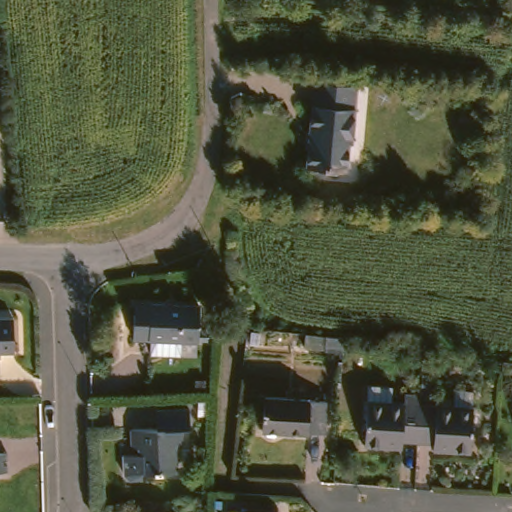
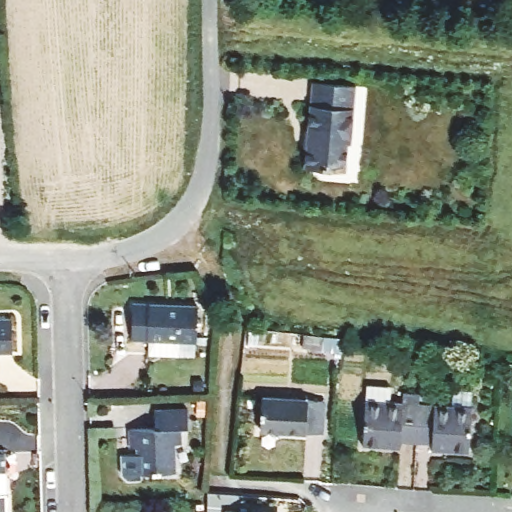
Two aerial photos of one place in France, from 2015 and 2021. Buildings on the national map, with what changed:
unchanged [(314,140),(314,131),(311,129),(311,79),(356,79),(356,135),(352,135),(352,164),(311,164),(311,144),(314,140)]
unchanged [(132,311),(195,314),(194,350),(131,346),(132,311)]
unchanged [(7,319),(7,354),(0,354),(0,319),(7,319)]
unchanged [(340,365),(322,363),(323,350),(341,351),(340,365)]
unchanged [(394,450),(360,447),(362,403),(363,389),(387,390),(387,405),(412,406),(409,445),(395,444),(394,450)]
unchanged [(268,400),(313,401),(317,404),(322,405),(322,430),(308,430),(307,435),(267,432),(268,400)]
unchanged [(156,426),(156,408),(186,405),(187,423),(181,425),(181,441),(173,442),(175,470),(139,474),(137,447),(132,447),(130,428),(156,426)]
unchanged [(412,406),(466,410),(464,455),(428,452),(428,446),(409,445),(412,406)]
unchanged [(9,450),(10,468),(0,469),(0,450),(9,450)]

